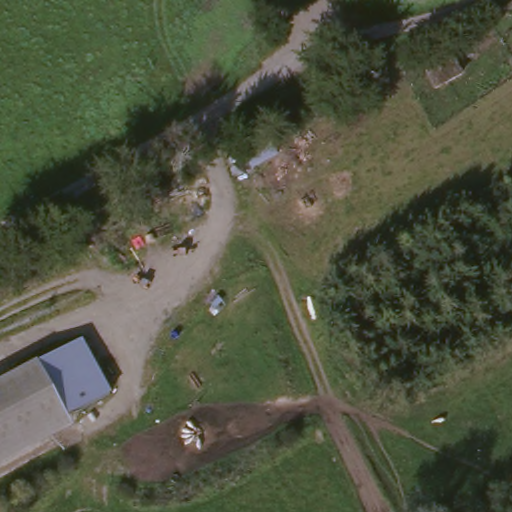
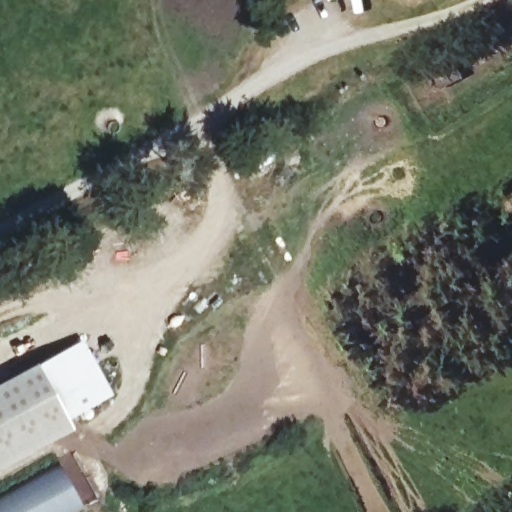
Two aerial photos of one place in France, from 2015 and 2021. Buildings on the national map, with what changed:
unchanged [(442,54),(451,72),(427,85),(416,67),(442,54)]
unchanged [(107,396),(64,426),(68,436),(0,473),(0,387),(74,347),(107,396)]
new [(80,502),(64,512),(0,512),(0,495),(58,462),(80,502)]

